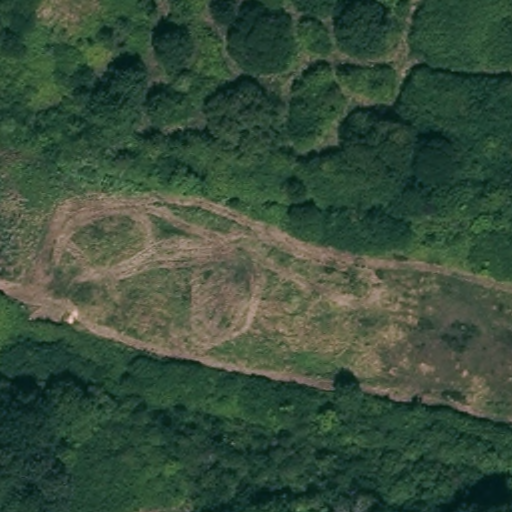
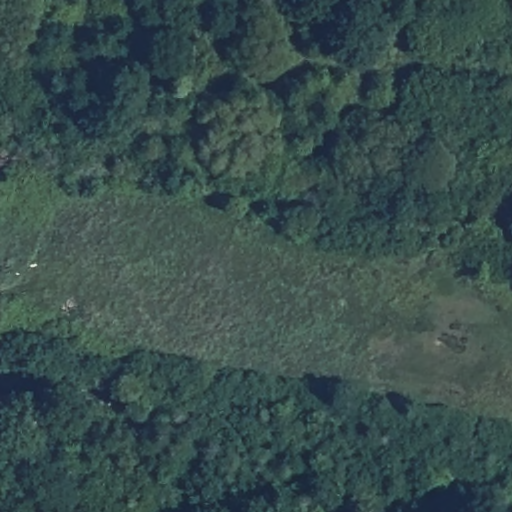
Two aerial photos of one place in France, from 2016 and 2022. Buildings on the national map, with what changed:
[]

